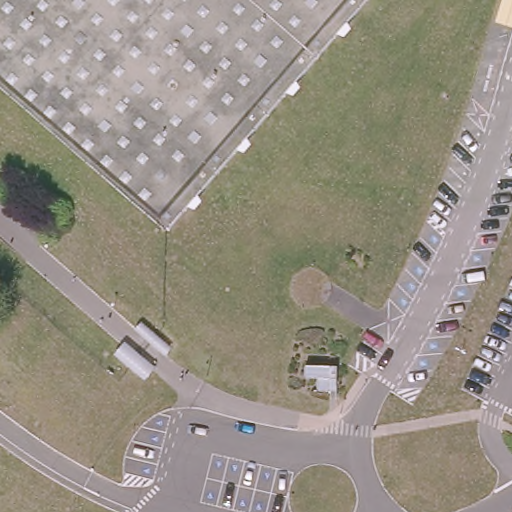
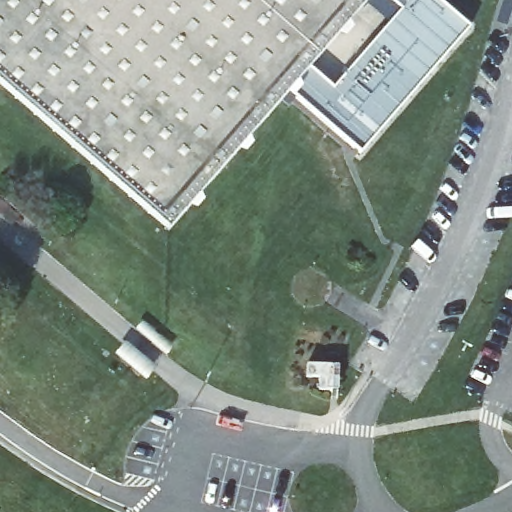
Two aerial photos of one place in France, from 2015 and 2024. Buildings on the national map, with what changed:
unchanged [(0,87),(0,0),(369,0),(168,233),(0,87)]
new [(316,72),(334,89),(401,12),(387,0),(438,0),(468,25),(358,158),(289,102),(316,72)]
unchanged [(512,25),(495,20),(502,0),(512,0),(512,25)]

